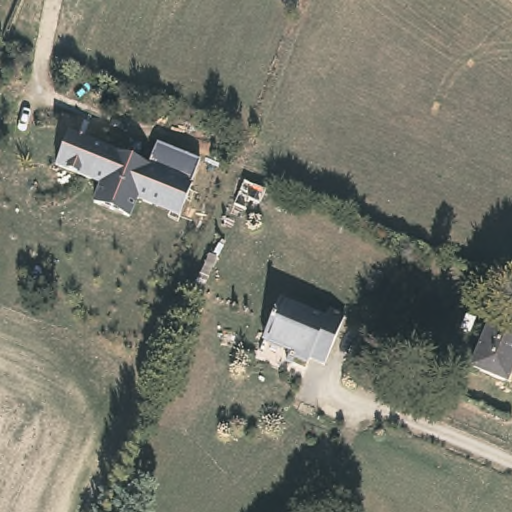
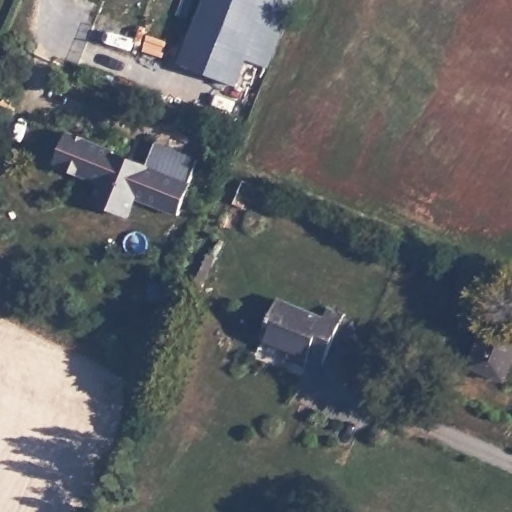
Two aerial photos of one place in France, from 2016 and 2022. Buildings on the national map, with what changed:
new [(236,86),(179,65),(205,0),(269,0),(236,86)]
unchanged [(115,156),(115,157),(149,171),(159,146),(202,163),(192,188),(193,188),(181,218),(138,201),(131,220),(96,206),(103,187),(57,168),(69,137),(115,156)]
unchanged [(257,183),(258,183),(268,187),(262,201),(252,197),(248,207),(237,203),(247,179),(257,183)]
unchanged [(326,325),(330,315),(345,320),(325,369),(311,364),(309,367),(296,362),(293,369),(287,367),(292,355),(264,344),(280,306),(326,325)]
unchanged [(512,368),(507,382),(471,367),(493,313),(512,321),(512,368)]

